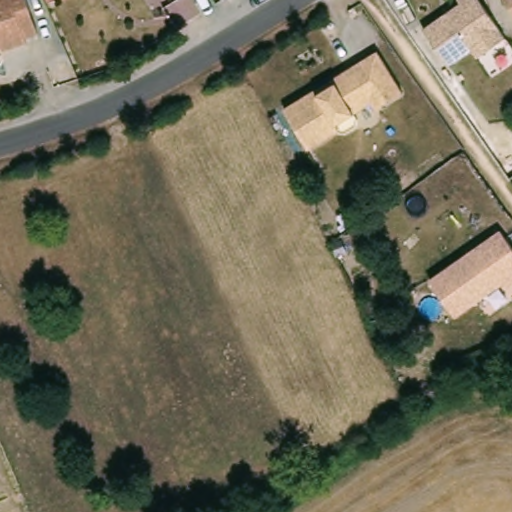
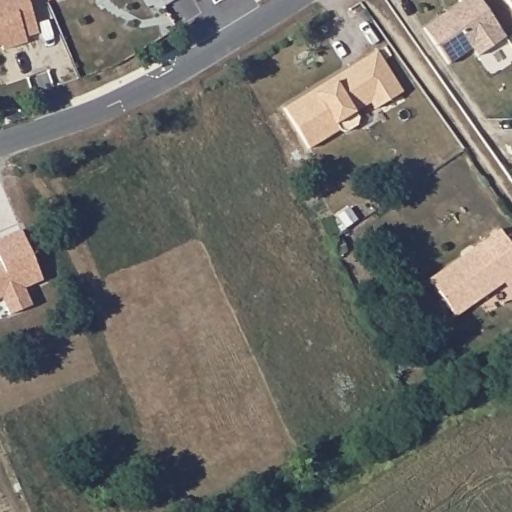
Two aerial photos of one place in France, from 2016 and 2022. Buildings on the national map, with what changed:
unchanged [(27,0),(31,11),(38,34),(25,38),(27,43),(3,51),(2,46),(0,46),(0,0),(27,0)]
unchanged [(63,0),(66,0),(64,1),(63,0)]
unchanged [(459,0),(480,0),(497,24),(505,35),(477,55),(471,46),(447,63),(422,27),(460,1),(459,0)]
unchanged [(512,0),(512,13),(503,0),(512,0)]
unchanged [(405,90),(376,107),(369,100),(356,109),(358,116),(307,144),(286,104),(314,86),(317,90),(334,81),(331,74),(377,48),(405,90)]
new [(42,281),(25,288),(31,305),(8,315),(1,298),(0,298),(0,238),(21,229),(42,281)]
unchanged [(455,316),(429,279),(500,230),(512,247),(512,282),(507,286),(503,282),(455,316)]

